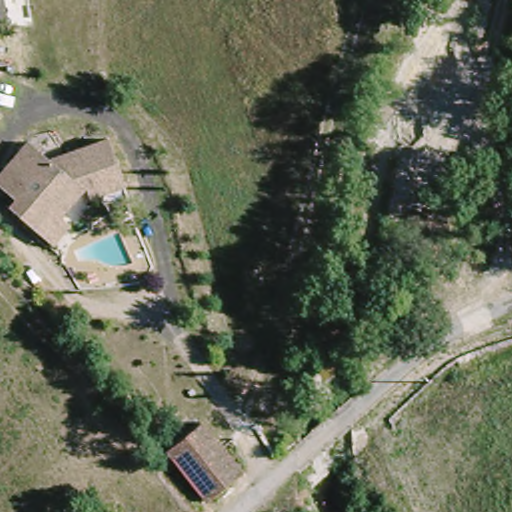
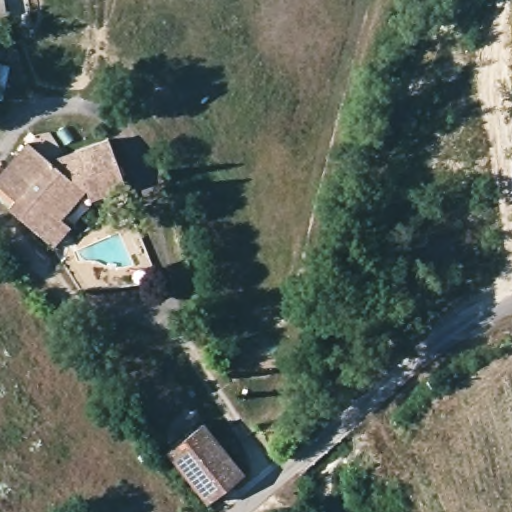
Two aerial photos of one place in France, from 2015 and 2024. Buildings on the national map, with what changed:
unchanged [(3,29),(0,29),(0,0),(3,0),(3,29)]
unchanged [(124,192),(85,205),(81,201),(65,223),(68,229),(50,248),(5,210),(12,199),(0,191),(0,178),(26,146),(48,162),(105,142),(124,192)]
unchanged [(210,505),(167,453),(209,423),(249,476),(210,505)]

